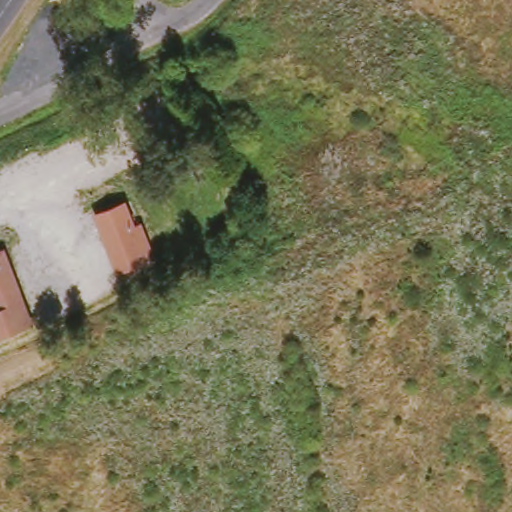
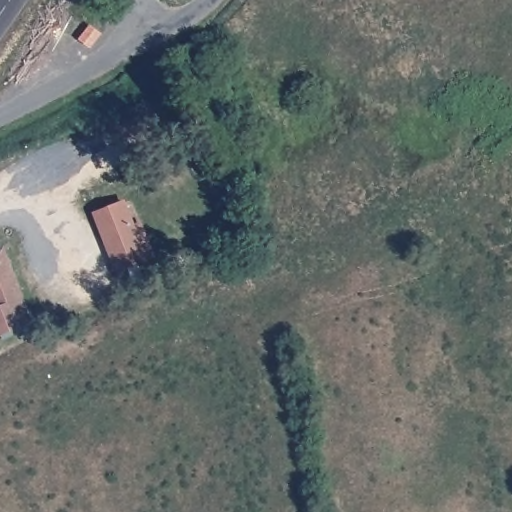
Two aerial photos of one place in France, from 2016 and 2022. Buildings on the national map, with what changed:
unchanged [(153,258),(146,261),(118,271),(97,216),(125,205),(134,229),(141,226),(153,258)]
unchanged [(0,294),(0,254),(9,251),(35,323),(14,331),(0,336),(0,310),(6,309),(0,294)]

